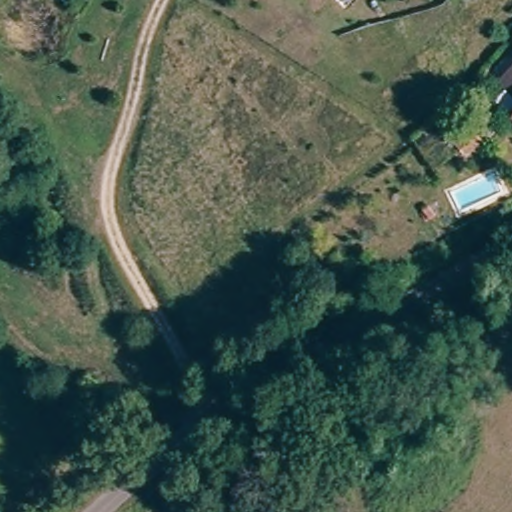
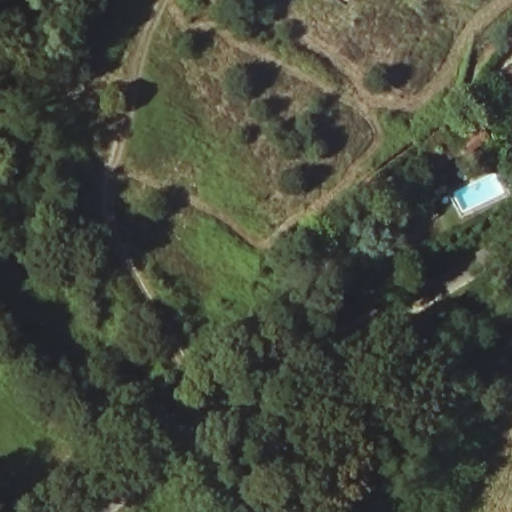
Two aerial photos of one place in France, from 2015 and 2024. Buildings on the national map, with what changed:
unchanged [(512,65),(512,78),(506,71),(512,65)]
unchanged [(477,137),(447,155),(438,140),(466,122),(477,137)]

